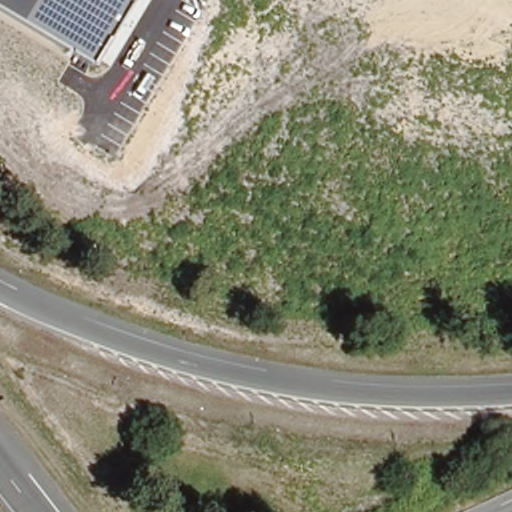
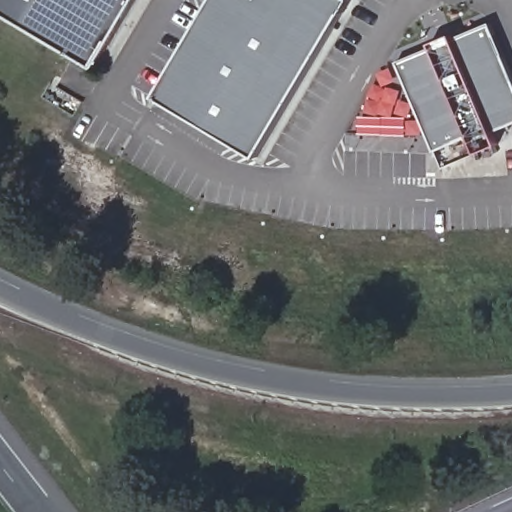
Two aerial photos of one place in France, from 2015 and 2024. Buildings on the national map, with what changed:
unchanged [(0,10),(0,0),(133,0),(94,66),(0,10)]
new [(156,96),(214,0),(349,0),(257,156),(156,96)]
new [(512,76),(512,123),(472,141),(470,135),(435,150),(398,63),(435,48),(433,44),(452,34),(455,39),(490,24),(512,76)]

